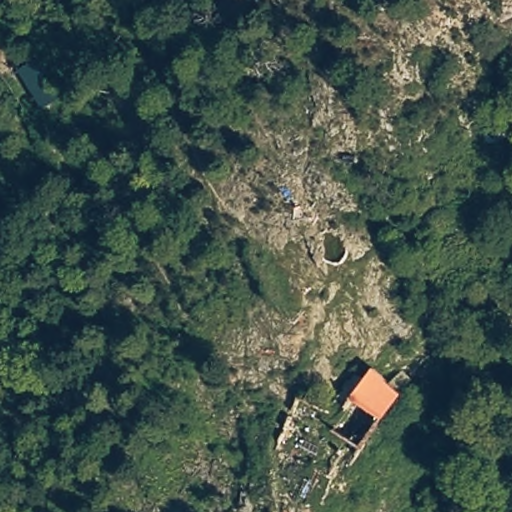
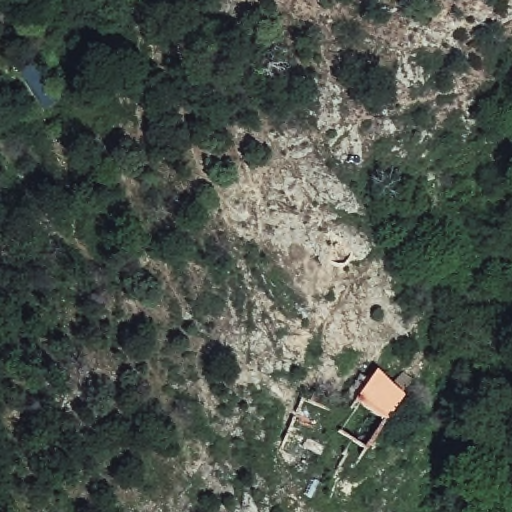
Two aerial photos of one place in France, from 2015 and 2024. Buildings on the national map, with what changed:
unchanged [(387,424),(356,399),(378,369),(407,396),(387,424)]

